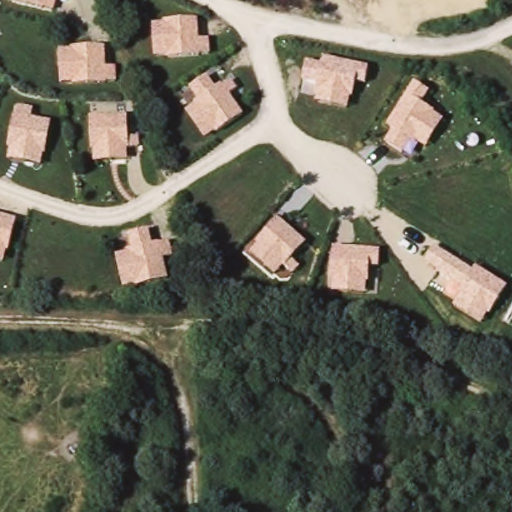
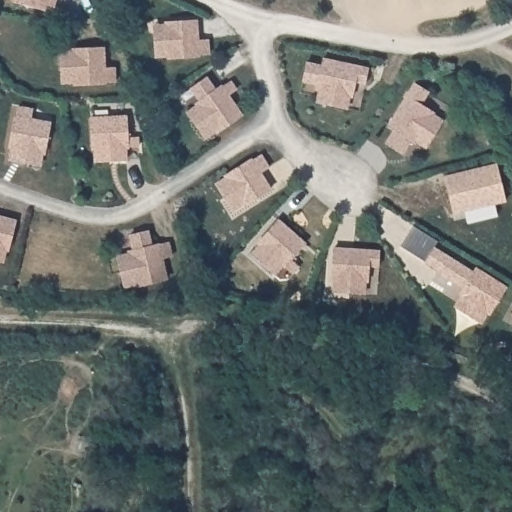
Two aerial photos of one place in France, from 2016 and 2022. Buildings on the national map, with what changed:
unchanged [(57,0),(55,13),(2,0),(57,0)]
unchanged [(153,23),(195,19),(198,39),(210,38),(211,54),(167,59),(167,56),(155,58),(153,23)]
unchanged [(60,48),(104,45),(106,66),(115,66),(116,81),(73,84),(73,82),(61,83),(60,48)]
unchanged [(320,85),(302,81),(307,63),(320,64),(321,56),(370,67),(366,86),(356,84),(355,96),(350,95),(346,110),(316,103),(320,85)]
unchanged [(186,111),(200,100),(190,89),(208,75),(220,89),(231,79),(238,89),(230,96),(245,114),(207,139),(186,111)]
unchanged [(385,143),(395,128),(387,124),(414,81),(430,90),(423,103),(435,111),(434,114),(445,120),(426,147),(413,140),(405,154),(385,143)]
unchanged [(9,159),(10,146),(8,146),(14,114),(17,114),(19,104),(35,108),(32,117),(54,121),(48,154),(43,154),(41,164),(9,159)]
unchanged [(91,117),(129,115),(130,136),(139,136),(139,148),(128,148),(128,160),(95,162),(91,117)]
new [(270,165),(262,170),(271,185),(234,211),(215,181),(262,153),(270,165)]
new [(496,163),(506,200),(453,214),(445,174),(496,163)]
unchanged [(0,260),(0,214),(17,217),(6,261),(0,260)]
unchanged [(251,253),(280,218),(306,242),(292,259),(300,266),(293,274),(284,265),(275,275),(251,253)]
unchanged [(116,254),(133,249),(130,234),(151,230),(155,244),(169,242),(176,276),(124,288),(116,254)]
unchanged [(433,245),(473,270),(475,267),(507,289),(491,315),(488,314),(480,327),(450,307),(460,290),(423,264),(433,245)]
unchanged [(378,251),(377,270),(368,270),(367,285),(366,284),(366,297),(330,293),(332,248),(378,251)]

